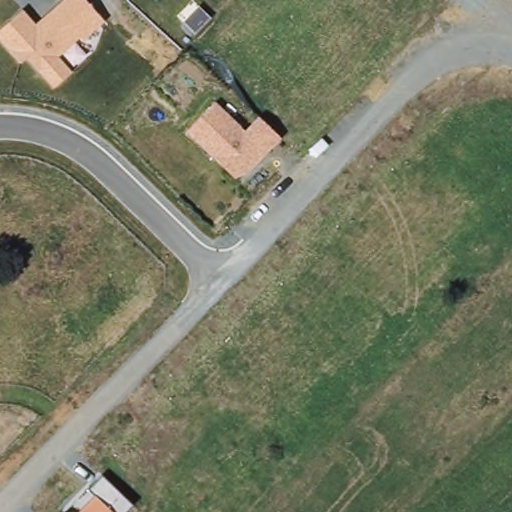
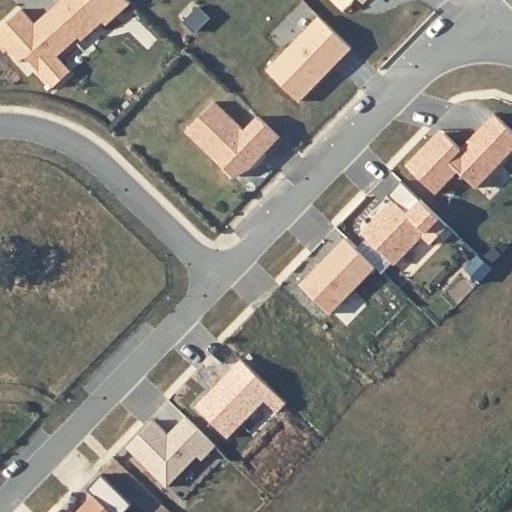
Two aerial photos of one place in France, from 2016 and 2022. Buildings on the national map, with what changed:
unchanged [(81,41),(78,39),(57,56),(71,72),(51,88),(26,58),(19,63),(0,42),(0,28),(22,10),(34,24),(60,0),(84,0),(102,22),(81,41)]
new [(355,0),(364,0),(360,5),(355,0)]
unchanged [(243,130),(257,116),(280,138),(250,172),(237,179),(186,130),(215,102),(243,130)]
new [(430,146),(442,134),(458,150),(492,115),(512,135),(512,149),(473,190),(455,172),(433,195),(403,166),(426,143),(430,146)]
new [(389,202),(384,196),(398,182),(445,228),(428,246),(419,238),(392,267),(358,234),(389,202)]
new [(299,285),(346,238),(377,269),(332,315),(299,285)]
new [(230,438),(196,407),(234,367),(266,399),(230,438)]
new [(185,418),(217,447),(204,460),(199,456),(169,487),(127,448),(155,420),(168,433),(185,418)]
unchanged [(93,495),(88,491),(101,477),(132,506),(126,512),(77,512),(93,495)]

